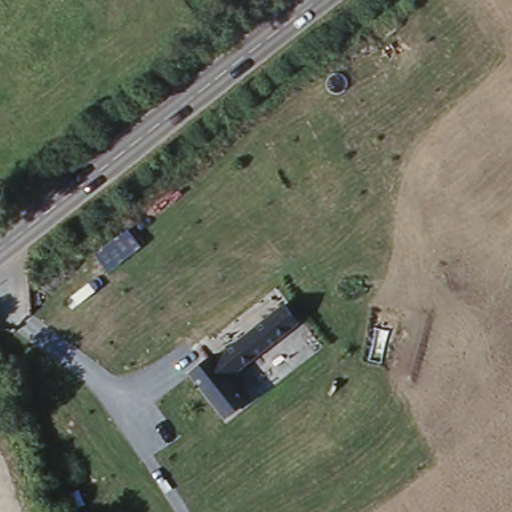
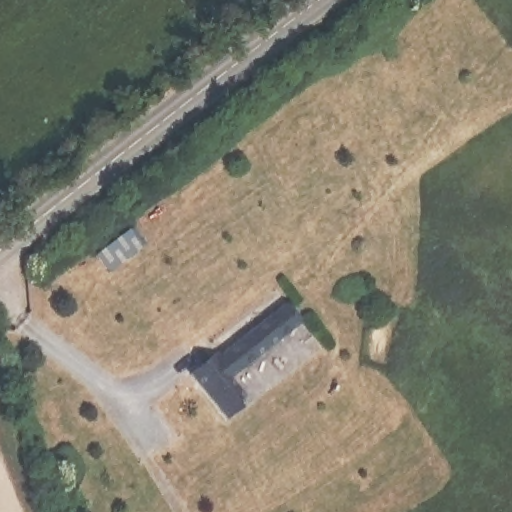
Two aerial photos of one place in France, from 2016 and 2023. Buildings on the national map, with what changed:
unchanged [(227,412),(192,371),(212,356),(214,358),(283,303),(297,320),(236,368),(228,375),(246,396),(227,412)]

